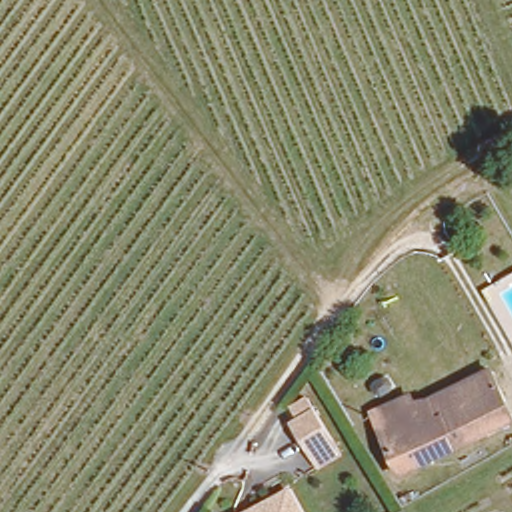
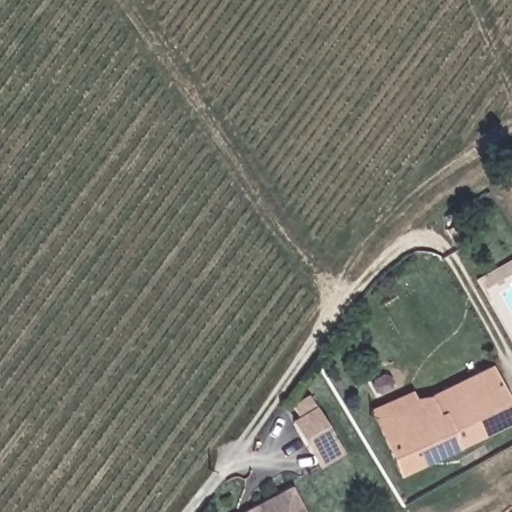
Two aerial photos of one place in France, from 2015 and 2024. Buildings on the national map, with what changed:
unchanged [(371,414),(421,392),(422,396),(487,370),(509,419),(396,471),(371,414)]
unchanged [(316,473),(308,458),(292,433),(300,427),(293,414),(308,404),(331,444),(341,457),(316,473)]
unchanged [(297,512),(246,512),(284,489),(297,512)]

